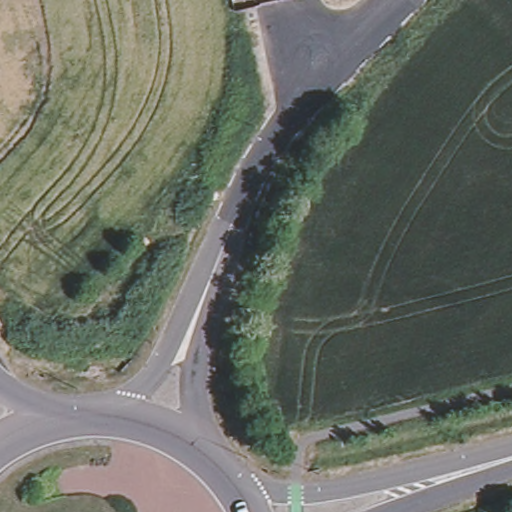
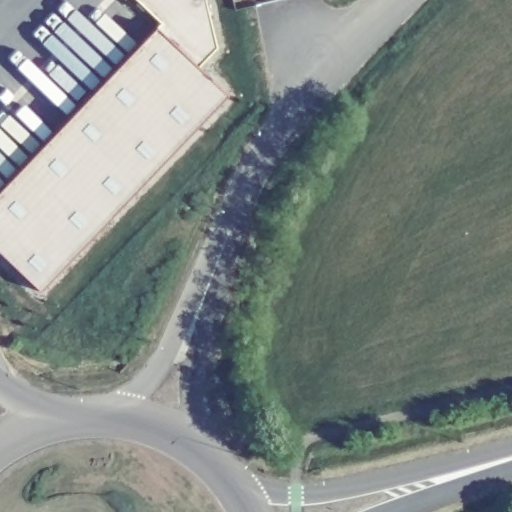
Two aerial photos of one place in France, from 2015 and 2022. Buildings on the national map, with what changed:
new [(156,28),(161,23),(137,0),(206,0),(217,47),(198,67),(227,96),(40,292),(0,254),(0,189),(156,28)]

